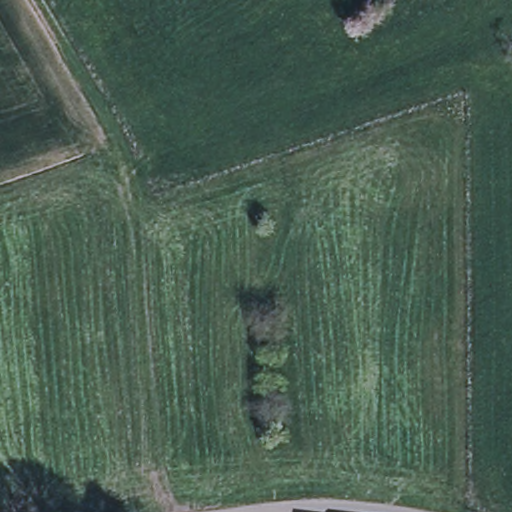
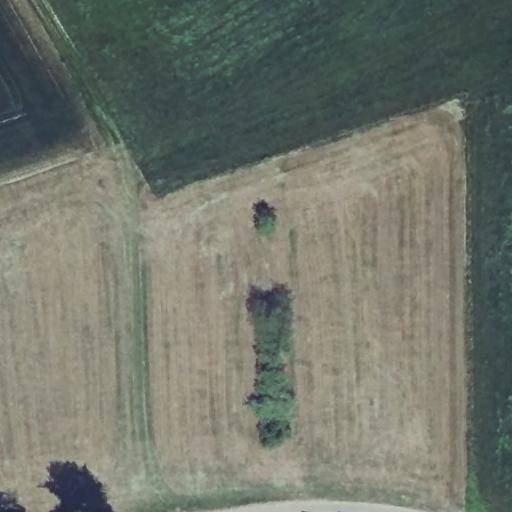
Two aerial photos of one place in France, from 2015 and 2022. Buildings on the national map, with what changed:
[]

